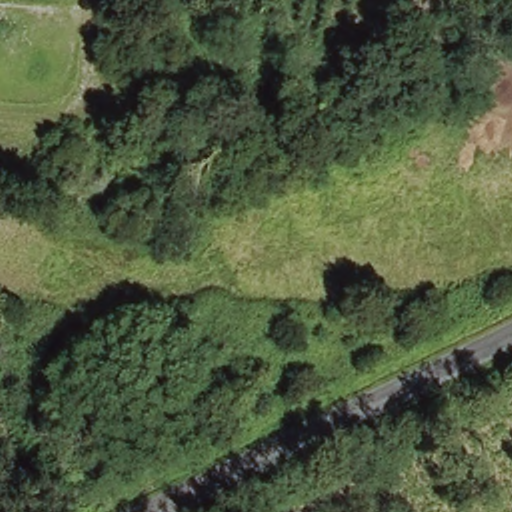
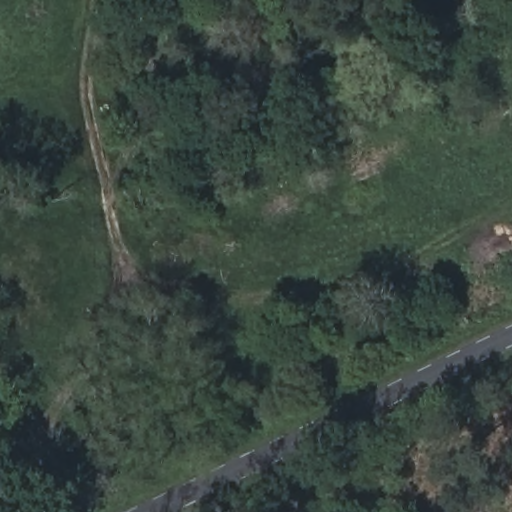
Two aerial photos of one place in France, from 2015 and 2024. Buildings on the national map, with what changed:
[]

